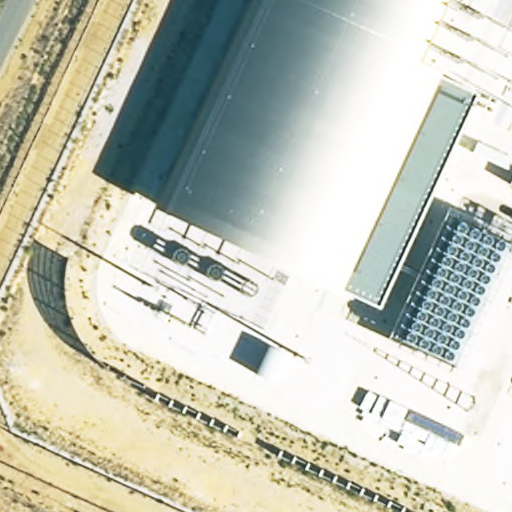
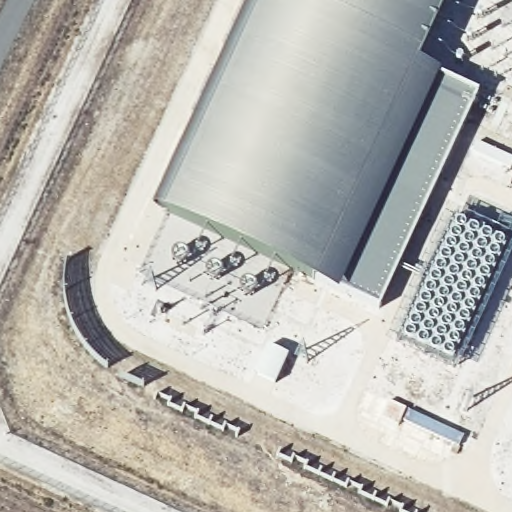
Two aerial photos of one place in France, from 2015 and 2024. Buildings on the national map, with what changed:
unchanged [(164,213),(261,0),(446,0),(417,63),(442,74),(440,77),(478,94),(380,311),(164,213)]

